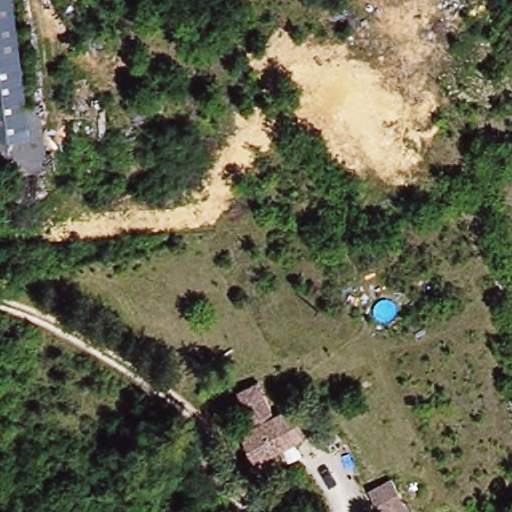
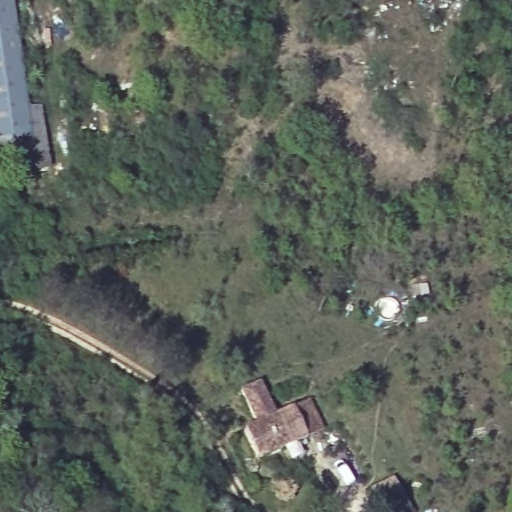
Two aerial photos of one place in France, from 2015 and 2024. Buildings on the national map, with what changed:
unchanged [(25,111),(40,112),(43,175),(0,180),(0,0),(14,0),(25,111)]
unchanged [(239,438),(290,415),(300,410),(312,440),(302,444),(252,468),(239,438)]
unchanged [(362,512),(360,506),(382,495),(390,512),(362,512)]

